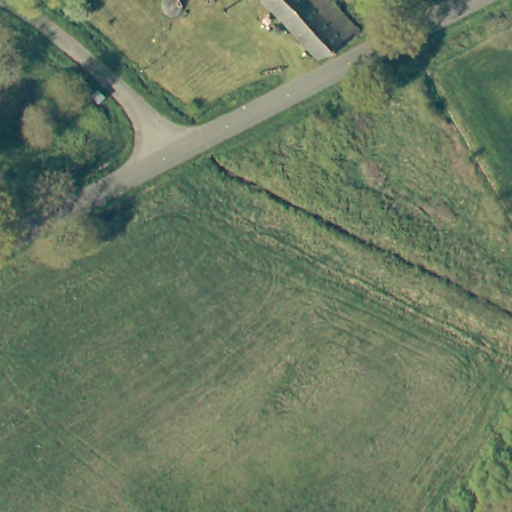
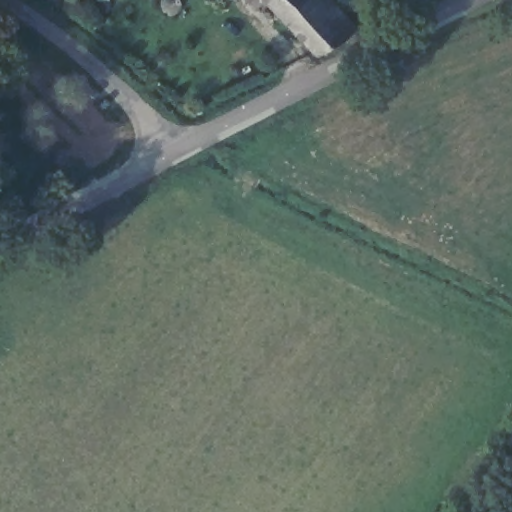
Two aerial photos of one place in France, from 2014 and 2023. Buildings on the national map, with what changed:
unchanged [(179,6),(175,9),(171,10),(166,9),(162,7),(160,4),(158,0),(178,0),(179,6)]
unchanged [(266,0),(331,0),(357,30),(318,59),(266,0)]

